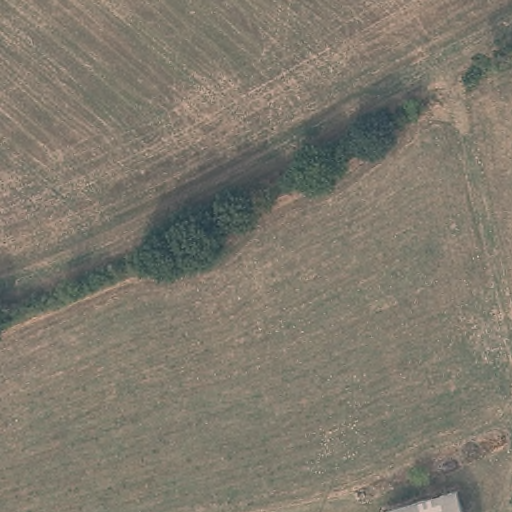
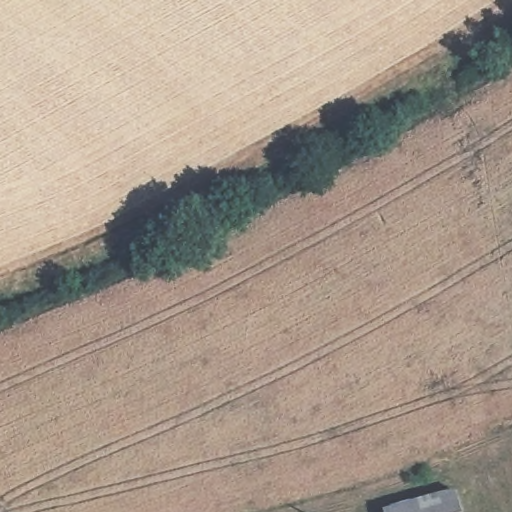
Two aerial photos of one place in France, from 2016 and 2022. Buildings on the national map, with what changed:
unchanged [(463,512),(385,512),(384,507),(457,489),(463,512)]

